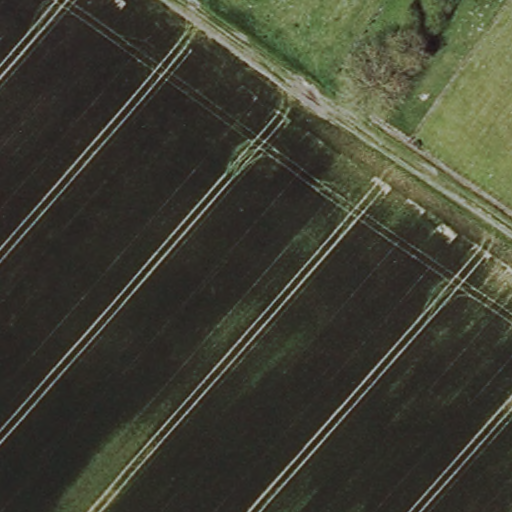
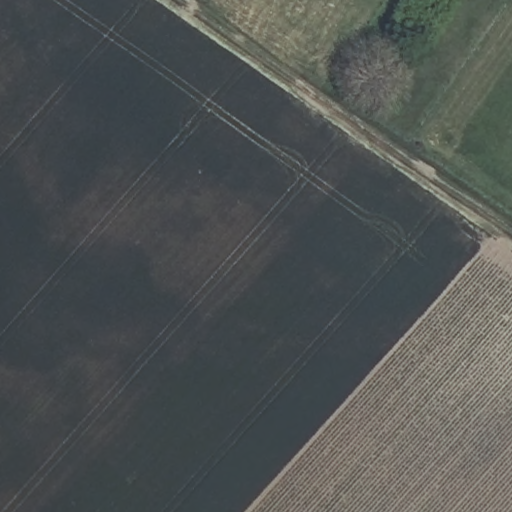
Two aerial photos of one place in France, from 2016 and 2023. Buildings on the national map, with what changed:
[]

